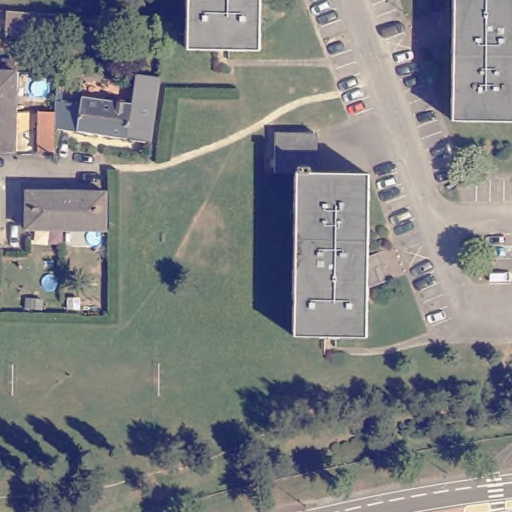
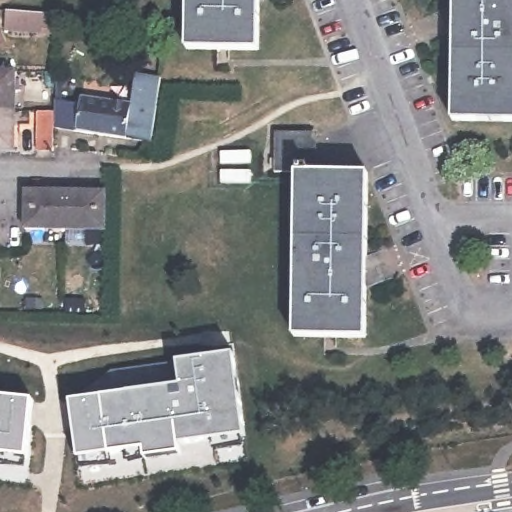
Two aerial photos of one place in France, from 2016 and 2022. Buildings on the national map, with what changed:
unchanged [(187,49),(188,0),(259,0),(258,50),(187,49)]
unchanged [(456,0),(512,0),(512,121),(454,119),(456,0)]
unchanged [(56,16),(56,34),(29,31),(8,30),(8,12),(56,16)]
unchanged [(20,77),(19,116),(0,115),(0,76),(20,77)]
unchanged [(43,120),(59,120),(59,117),(59,102),(86,107),(87,100),(136,107),(141,77),(165,81),(155,146),(59,131),(59,142),(59,154),(42,154),(43,120)]
unchanged [(18,155),(0,155),(0,115),(19,116),(18,155)]
unchanged [(320,138),(319,176),(373,177),(370,341),(299,339),(302,176),(279,176),(280,137),(320,138)]
unchanged [(27,229),(29,190),(68,192),(67,230),(27,229)]
unchanged [(67,230),(68,192),(107,192),(105,231),(67,230)]
new [(144,456),(143,447),(77,456),(73,423),(70,399),(83,397),(82,390),(110,369),(233,352),(244,433),(178,442),(180,451),(144,456)]
new [(1,395),(32,397),(29,422),(26,454),(0,452),(0,394),(1,395)]

